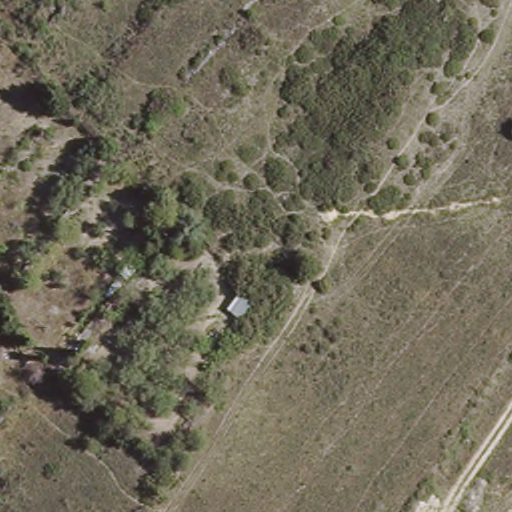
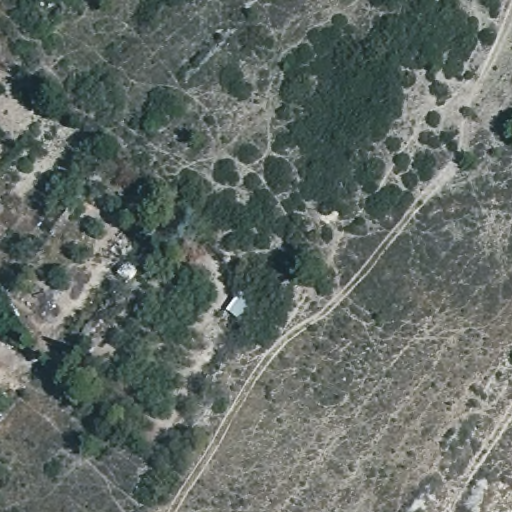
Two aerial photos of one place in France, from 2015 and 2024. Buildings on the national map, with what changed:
unchanged [(187,228),(167,246),(152,234),(166,217),(187,228)]

